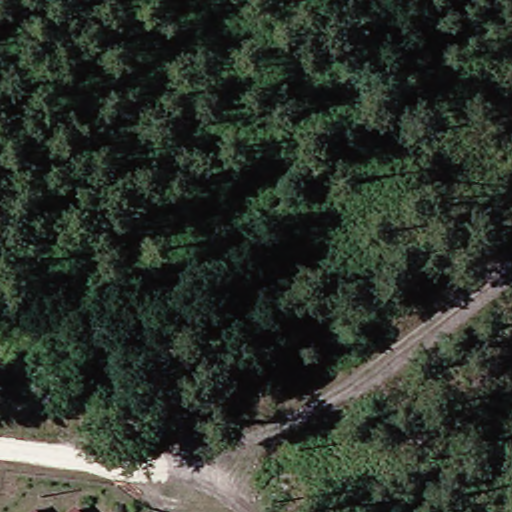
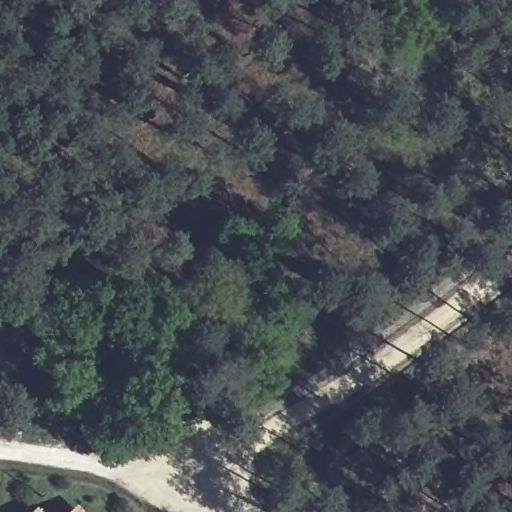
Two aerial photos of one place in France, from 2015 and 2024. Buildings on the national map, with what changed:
unchanged [(42,504),(49,512),(33,512),(42,504)]
unchanged [(83,504),(91,512),(73,512),(83,504)]

